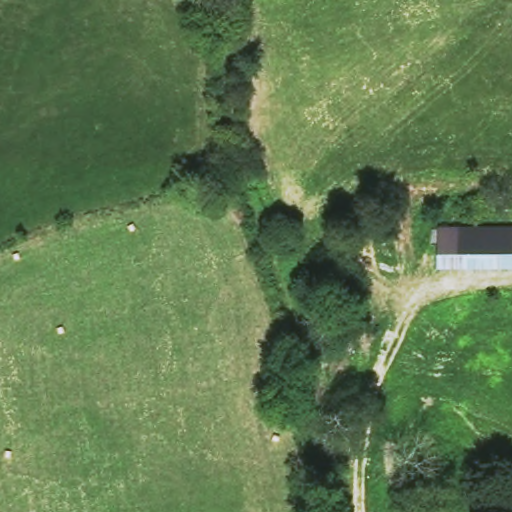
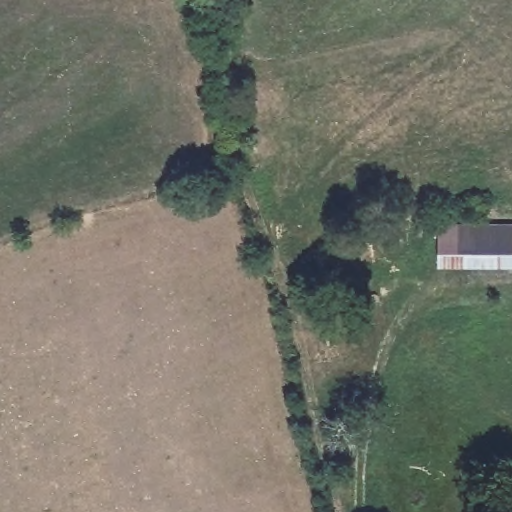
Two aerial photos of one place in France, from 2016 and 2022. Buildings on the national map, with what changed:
unchanged [(512,228),(512,269),(438,269),(438,229),(512,228)]

